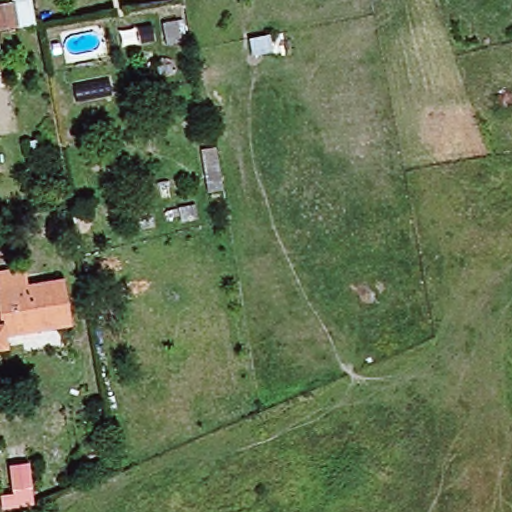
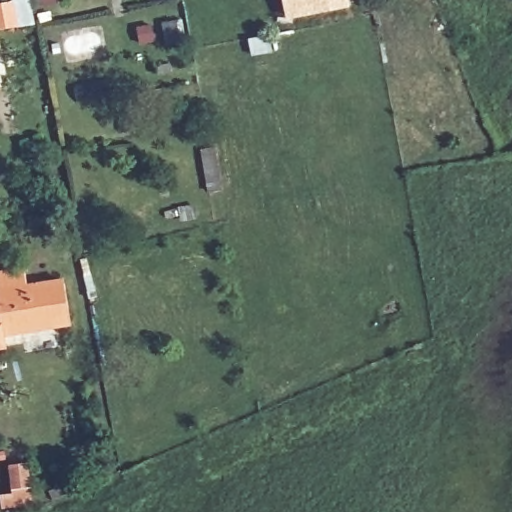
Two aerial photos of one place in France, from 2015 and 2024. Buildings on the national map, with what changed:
unchanged [(0,0),(27,0),(29,21),(0,28),(0,0)]
new [(351,7),(285,19),(281,0),(350,0),(351,7)]
new [(272,32),(276,50),(250,57),(246,37),(272,32)]
unchanged [(67,276),(72,306),(74,318),(23,327),(5,331),(9,353),(0,355),(0,287),(67,276)]

